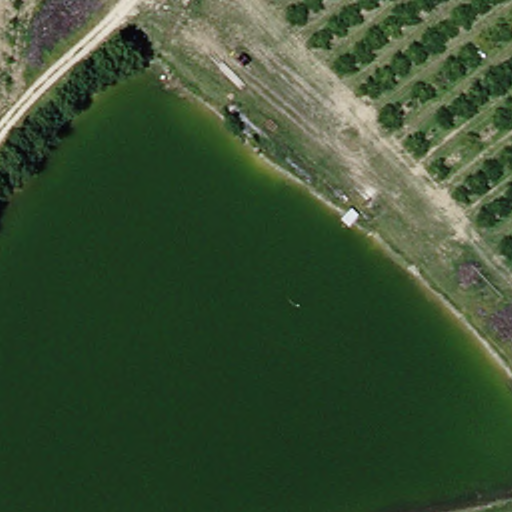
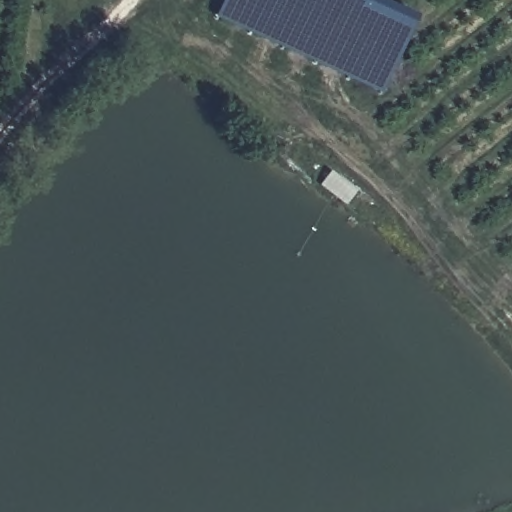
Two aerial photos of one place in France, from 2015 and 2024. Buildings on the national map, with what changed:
new [(374,0),(417,19),(381,95),(215,20),(224,0),(374,0)]
new [(346,208),(318,187),(330,172),(357,193),(346,208)]

